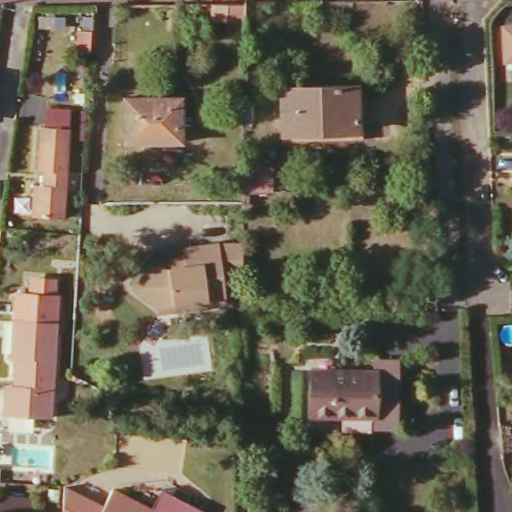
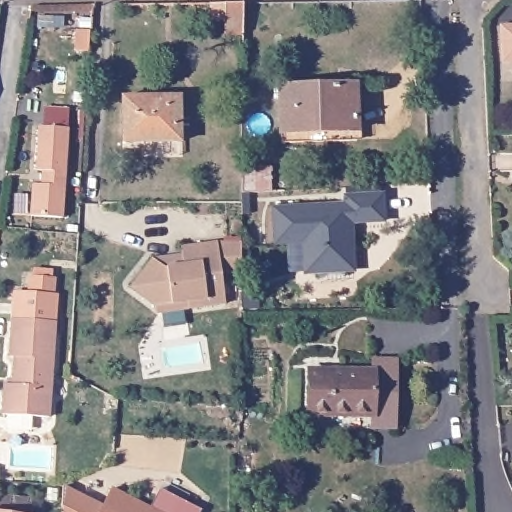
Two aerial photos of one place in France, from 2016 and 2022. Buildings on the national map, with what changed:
unchanged [(213,5),(245,4),(245,36),(225,36),(224,17),(213,18),(213,5)]
unchanged [(497,25),(512,25),(512,59),(498,60),(497,25)]
unchanged [(90,32),(90,43),(90,52),(76,51),(77,31),(90,32)]
unchanged [(276,139),(276,129),(275,84),(350,83),(350,129),(351,137),(276,139)]
unchanged [(124,97),(181,97),(181,141),(124,141),(124,97)]
unchanged [(62,222),(30,221),(31,197),(41,190),(42,179),(35,178),(38,133),(45,134),(46,115),(66,117),(65,135),(68,136),(62,222)]
new [(242,167),(271,167),(271,191),(242,192),(242,167)]
new [(344,205),(344,196),(381,195),(383,221),(347,223),(349,271),(304,273),(302,242),(275,243),(273,207),(344,205)]
unchanged [(147,259),(176,257),(175,249),(236,242),(236,273),(215,276),(217,306),(182,310),(181,303),(147,307),(124,286),(147,259)]
unchanged [(10,353),(5,352),(10,289),(52,292),(45,415),(0,412),(0,388),(8,377),(10,353)]
unchanged [(373,362),(393,362),(393,427),(371,427),(371,416),(306,414),(307,372),(372,373),(373,362)]
unchanged [(103,507),(101,512),(63,512),(64,487),(103,507)]
unchanged [(155,512),(101,512),(112,490),(155,512)]
unchanged [(201,512),(155,512),(151,510),(161,492),(201,512)]
unchanged [(23,512),(0,512),(0,500),(25,503),(23,512)]

